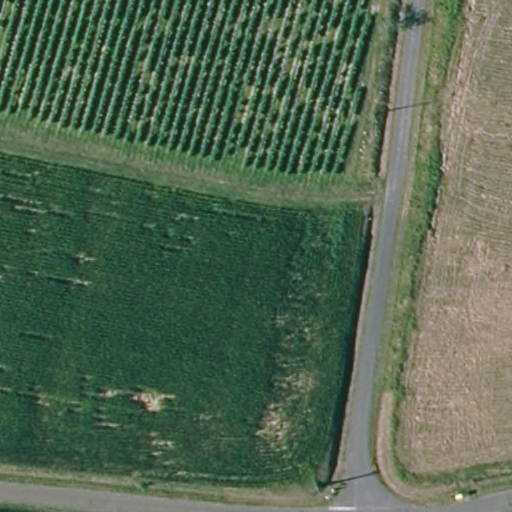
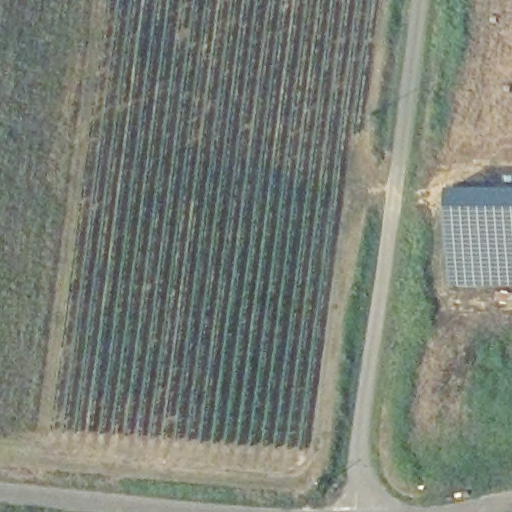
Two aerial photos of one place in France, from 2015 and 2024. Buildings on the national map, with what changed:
new [(512,285),(452,285),(451,186),(512,186),(512,285)]

